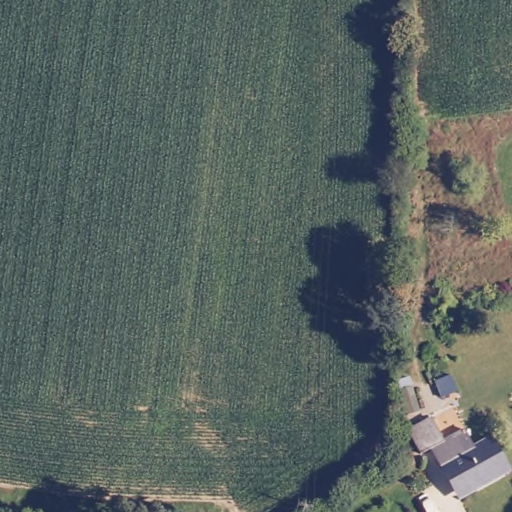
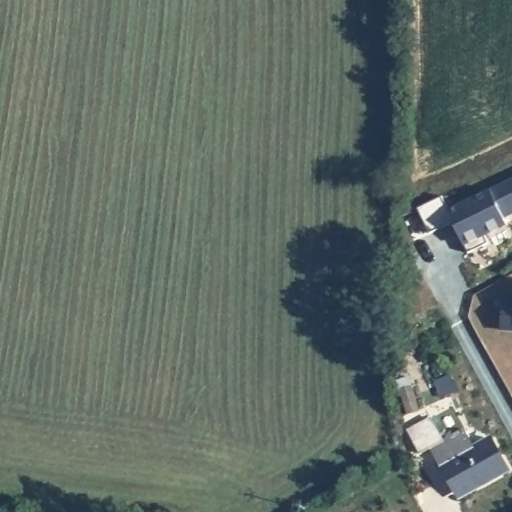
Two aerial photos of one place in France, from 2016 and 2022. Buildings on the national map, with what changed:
new [(448,211),(512,179),(512,214),(504,218),(508,225),(484,236),(488,243),(468,252),(465,245),(454,222),(429,234),(418,209),(441,197),(448,211)]
new [(512,305),(512,331),(500,330),(502,305),(512,305)]
unchanged [(431,412),(444,436),(464,426),(472,440),(487,432),(506,468),(455,493),(428,443),(416,451),(403,427),(431,412)]

